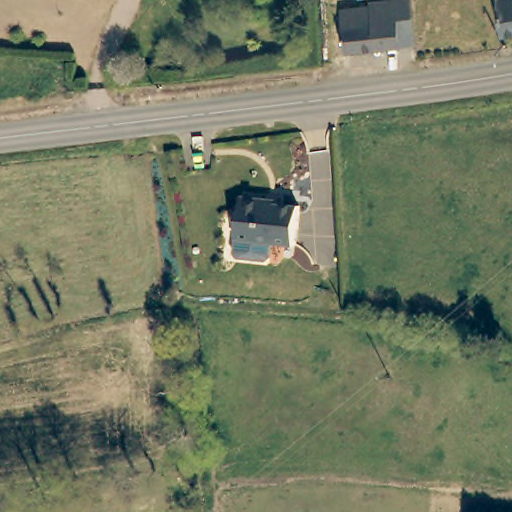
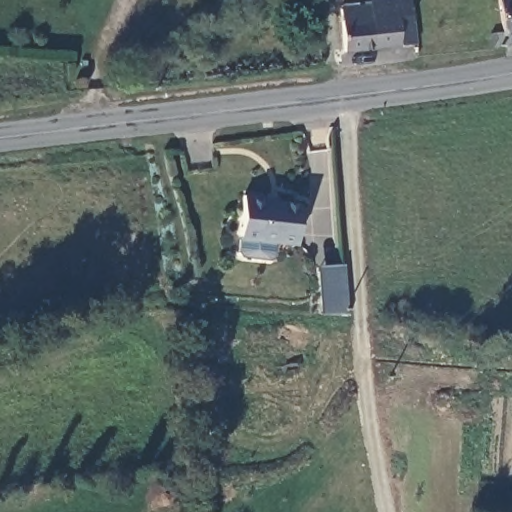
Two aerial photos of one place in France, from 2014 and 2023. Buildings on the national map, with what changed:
unchanged [(498,0),(512,0),(512,32),(503,34),(498,0)]
unchanged [(375,20),(374,5),(412,1),(415,44),(401,45),(399,19),(375,20)]
unchanged [(401,45),(347,51),(342,8),(374,5),(375,20),(399,19),(401,45)]
unchanged [(266,201),(298,203),(294,244),(236,239),(240,194),(267,196),(266,201)]
new [(344,265),(348,312),(320,314),(317,267),(344,265)]

